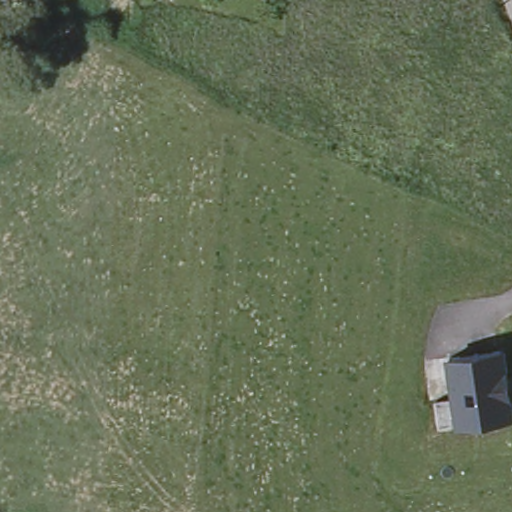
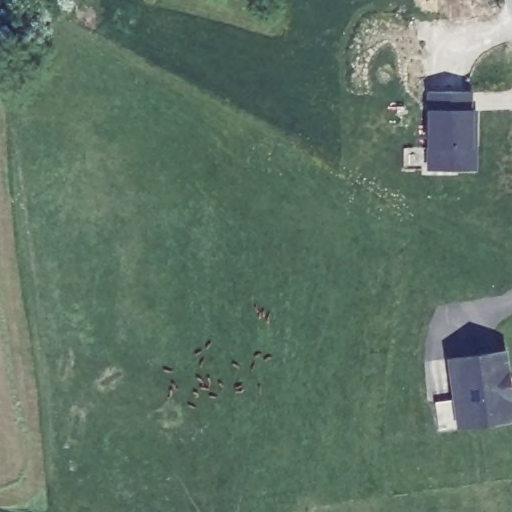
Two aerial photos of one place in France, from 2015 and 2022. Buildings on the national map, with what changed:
new [(475,170),(425,169),(427,111),(427,92),(471,90),(471,110),(475,110),(475,170)]
unchanged [(512,388),(512,419),(512,425),(458,428),(452,360),(507,356),(512,388)]

